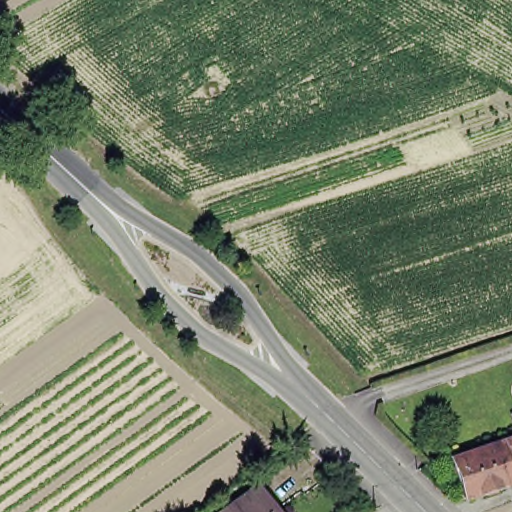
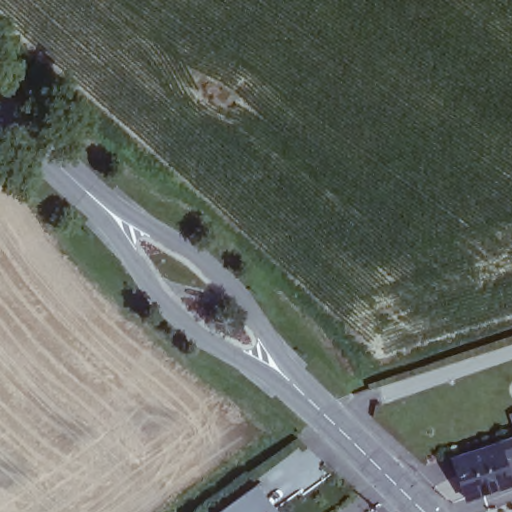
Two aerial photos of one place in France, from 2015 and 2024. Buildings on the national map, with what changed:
unchanged [(512,447),(510,448),(510,445),(503,447),(506,454),(512,452),(512,475),(467,490),(453,453),(500,437),(498,434),(505,432),(512,430),(512,447)]
unchanged [(269,495),(264,499),(273,512),(218,512),(260,482),(269,495)]

